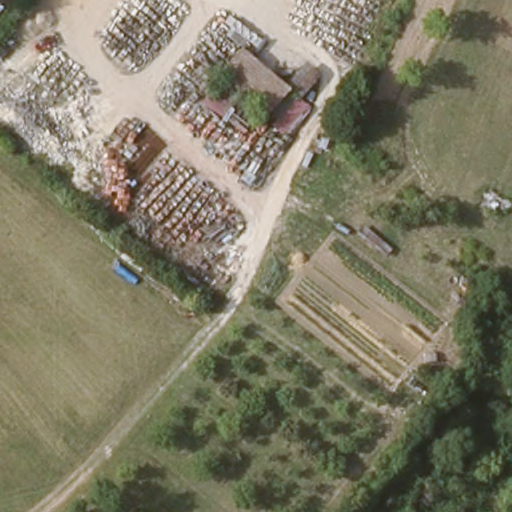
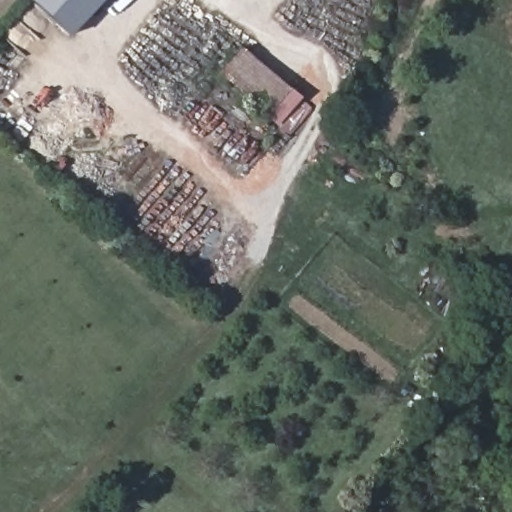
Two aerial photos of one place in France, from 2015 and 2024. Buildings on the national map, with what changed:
new [(68,36),(29,0),(103,0),(68,36)]
unchanged [(284,123),(220,81),(245,51),(290,87),(309,62),(327,77),(284,123)]

